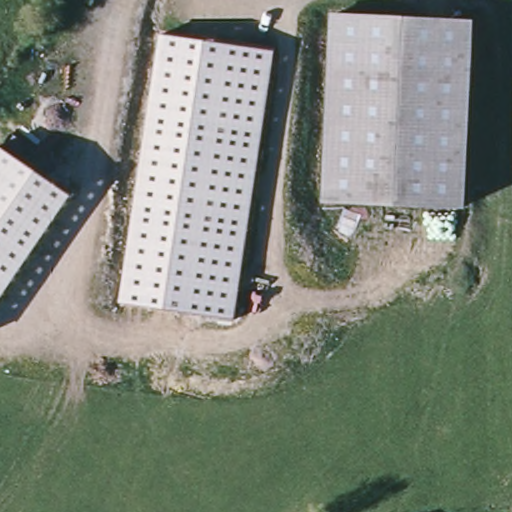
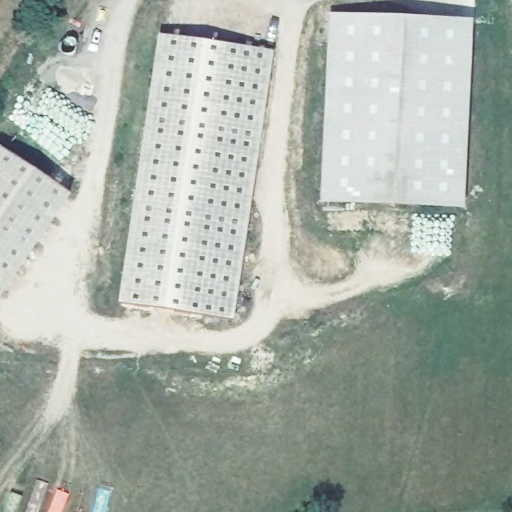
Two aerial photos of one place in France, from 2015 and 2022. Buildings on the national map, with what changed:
unchanged [(321,200),(330,14),(473,21),(465,206),(321,200)]
unchanged [(272,50),(233,320),(120,304),(158,37),(272,50)]
unchanged [(0,301),(0,151),(70,197),(0,301)]

